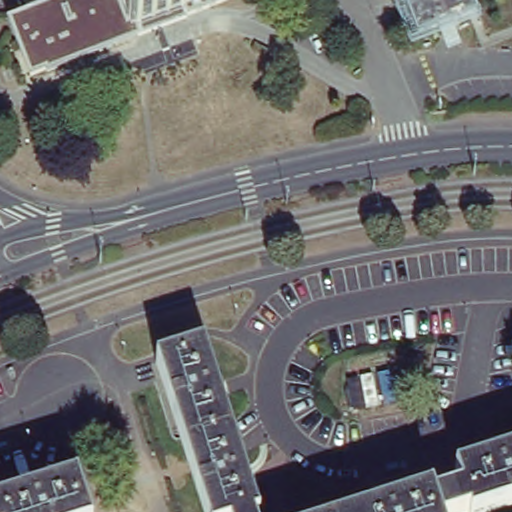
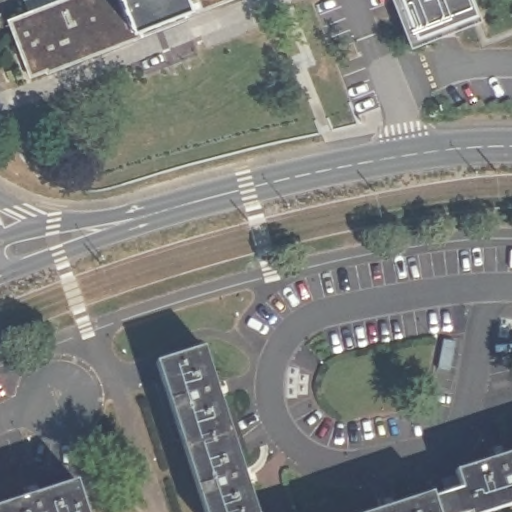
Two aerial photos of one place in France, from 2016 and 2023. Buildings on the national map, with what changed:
unchanged [(58,0),(234,0),(187,18),(183,11),(139,28),(142,37),(46,74),(44,70),(29,75),(7,19),(58,0)]
unchanged [(468,15),(421,34),(407,0),(463,0),(468,15)]
unchanged [(205,347),(258,512),(206,512),(157,362),(205,347)]
unchanged [(376,512),(432,494),(433,499),(462,490),(456,472),(512,454),(512,506),(493,512),(376,512)]
unchanged [(81,482),(91,512),(0,512),(0,508),(81,482)]

